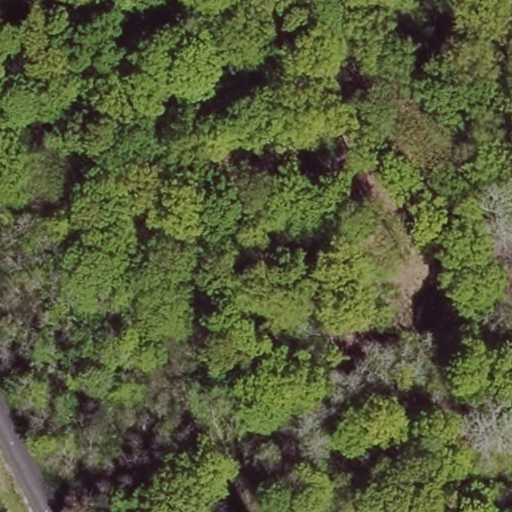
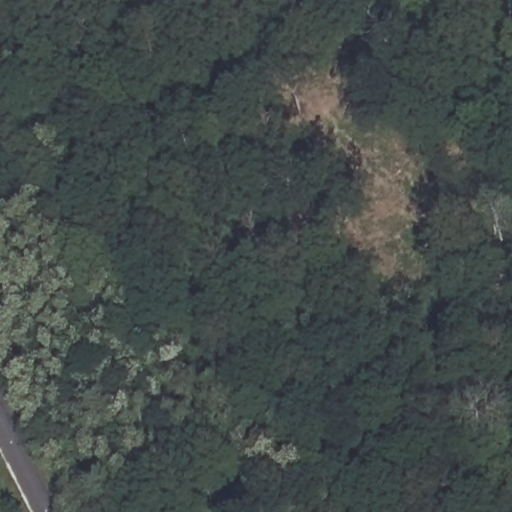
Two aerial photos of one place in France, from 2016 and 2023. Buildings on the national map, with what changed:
[]

